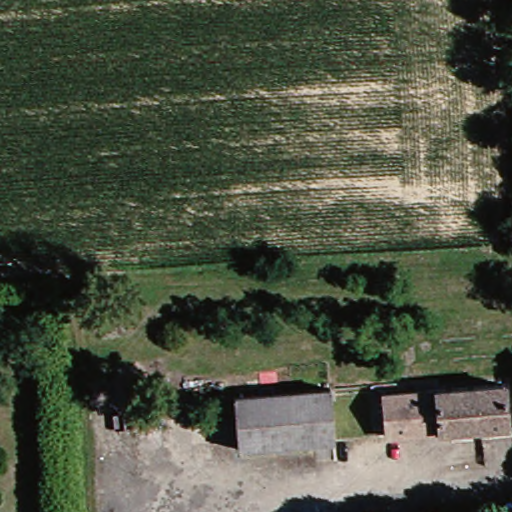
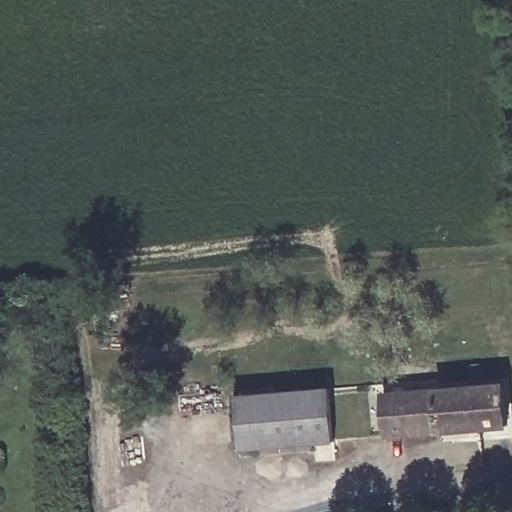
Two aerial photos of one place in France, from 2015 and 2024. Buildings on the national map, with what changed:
unchanged [(231,452),(229,395),(329,388),(333,445),(231,452)]
unchanged [(499,394),(502,438),(433,440),(432,399),(499,394)]
unchanged [(432,399),(433,440),(422,442),(380,445),(377,403),(418,399),(432,399)]

